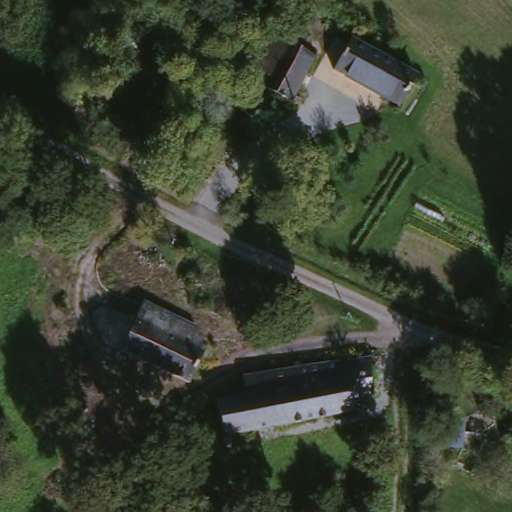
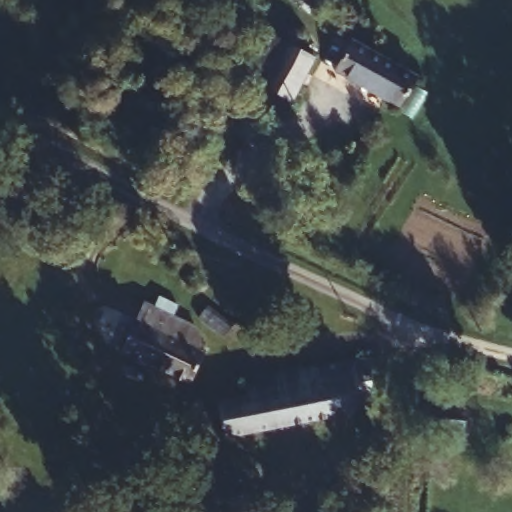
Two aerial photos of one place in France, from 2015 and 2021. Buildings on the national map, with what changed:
unchanged [(334,70),(351,41),(415,78),(399,107),(334,70)]
unchanged [(267,91),(286,46),(314,60),(295,104),(267,91)]
unchanged [(15,212),(24,186),(50,195),(41,220),(15,212)]
unchanged [(229,310),(237,275),(258,280),(281,286),(272,321),(249,315),(229,310)]
unchanged [(127,351),(151,302),(204,330),(211,351),(195,385),(127,351)]
unchanged [(228,428),(223,396),(249,393),(247,374),(356,357),(379,353),(373,390),(361,391),(364,405),(228,428)]

